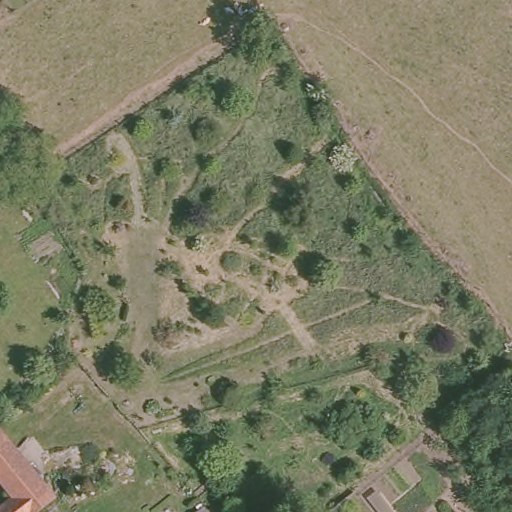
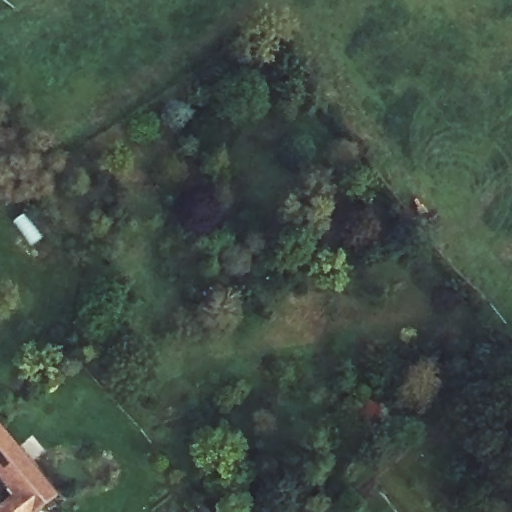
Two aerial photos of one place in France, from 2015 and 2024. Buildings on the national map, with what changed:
unchanged [(37,512),(26,512),(12,496),(0,482),(0,430),(55,496),(37,512)]
unchanged [(26,512),(0,512),(0,506),(12,496),(26,512)]

